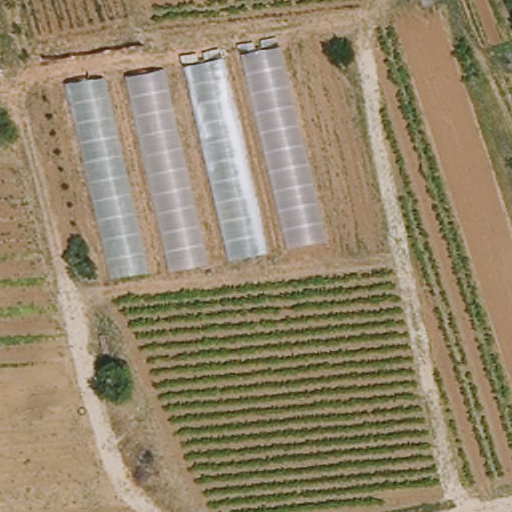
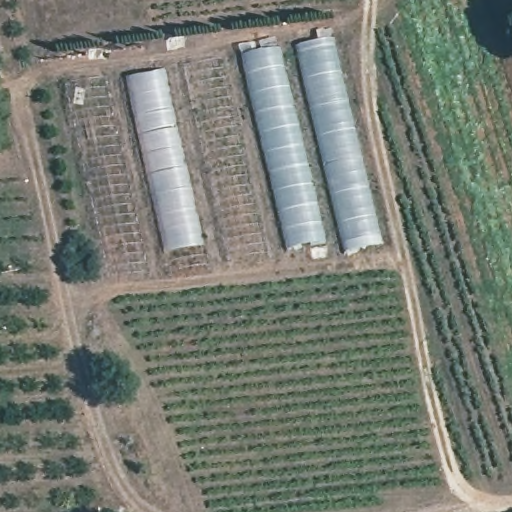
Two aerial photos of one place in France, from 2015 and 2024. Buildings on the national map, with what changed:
new [(385,250),(342,257),(293,45),(335,36),(385,250)]
unchanged [(245,55),(280,48),(327,241),(294,250),(245,55)]
unchanged [(186,66),(221,59),(267,254),(232,262),(186,66)]
unchanged [(130,78),(163,73),(206,267),(174,272),(130,78)]
unchanged [(68,85),(105,79),(149,274),(115,279),(68,85)]

